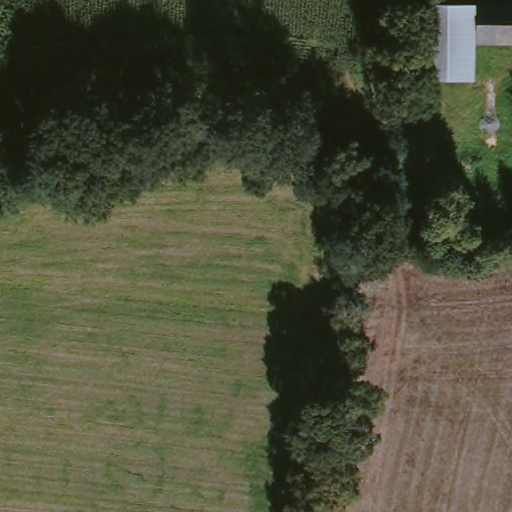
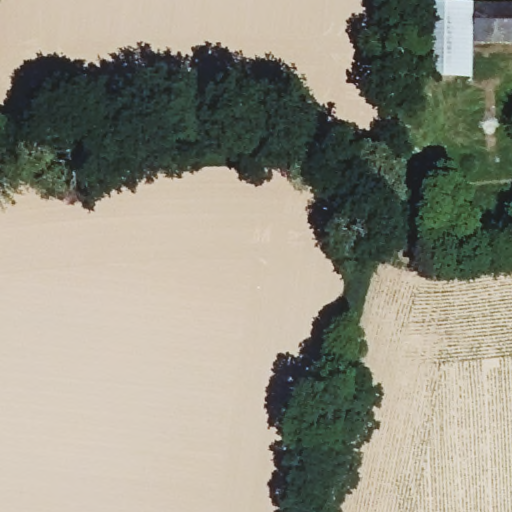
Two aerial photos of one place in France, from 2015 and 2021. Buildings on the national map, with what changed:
unchanged [(474,83),(421,83),(422,9),(475,10),(474,48),(474,83)]
unchanged [(474,48),(475,10),(512,10),(512,48),(474,48)]

